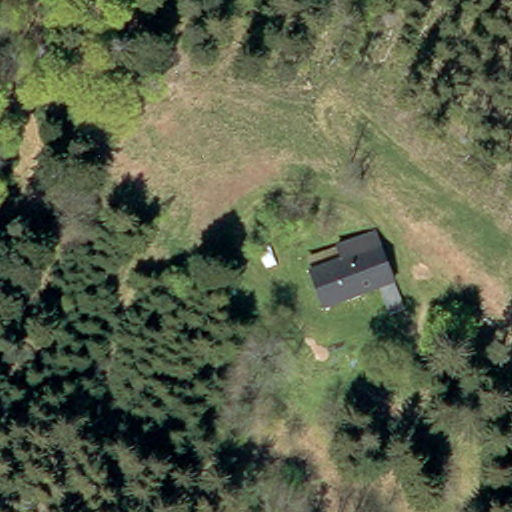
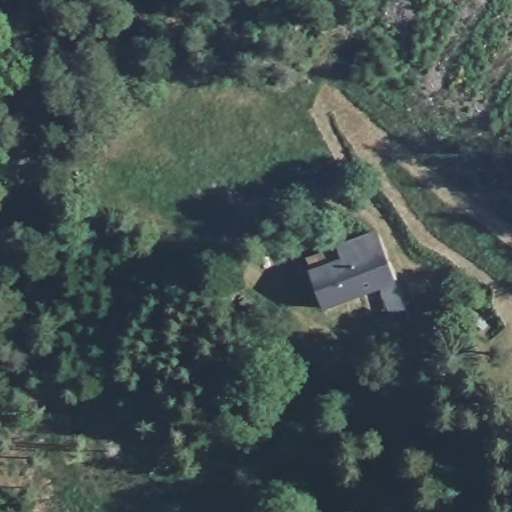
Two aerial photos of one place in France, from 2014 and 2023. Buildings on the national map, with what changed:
unchanged [(391,282),(318,313),(302,276),(332,264),(327,251),(370,232),(391,282)]

